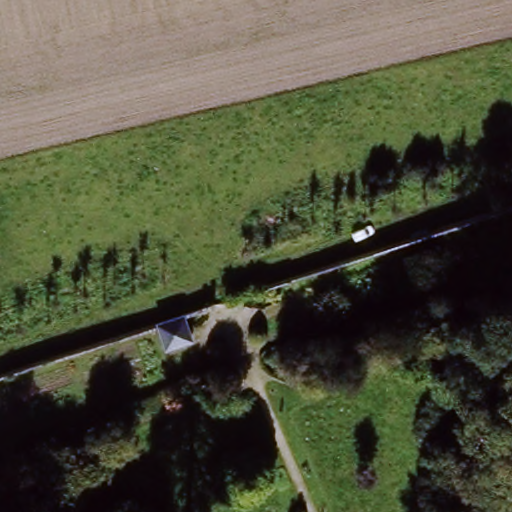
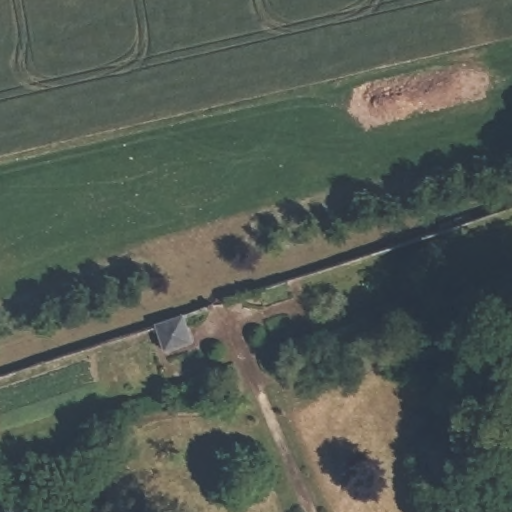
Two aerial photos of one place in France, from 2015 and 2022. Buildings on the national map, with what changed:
unchanged [(136,353),(128,328),(152,321),(161,346),(136,353)]

